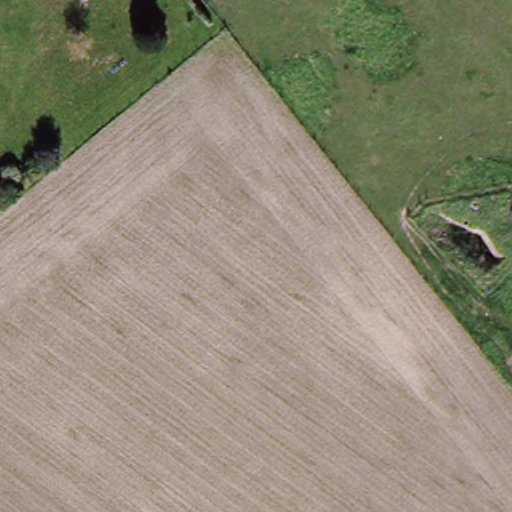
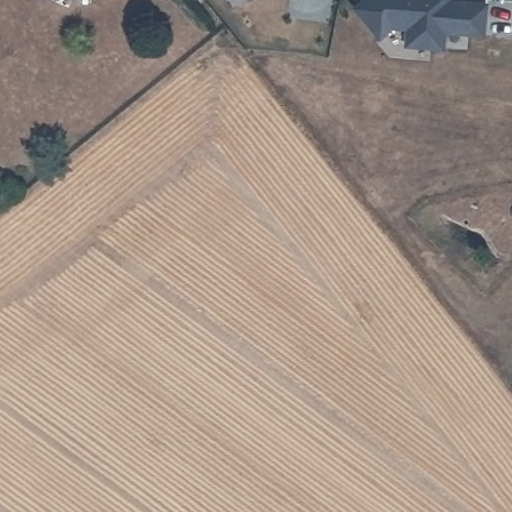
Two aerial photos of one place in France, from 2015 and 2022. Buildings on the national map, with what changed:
new [(366,0),(449,0),(449,2),(487,6),(485,36),(446,32),(445,49),(407,46),(409,29),(393,28),(380,38),(355,9),(366,0)]

